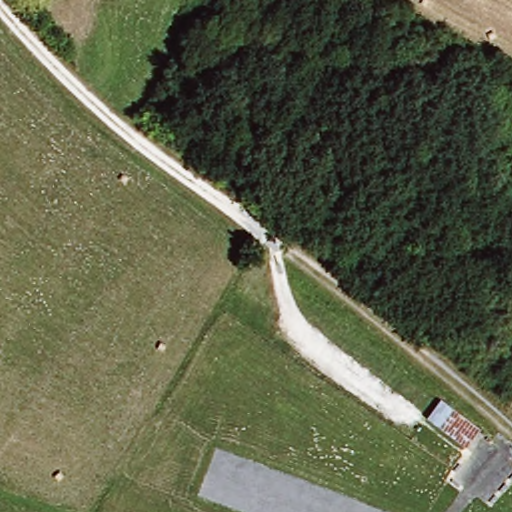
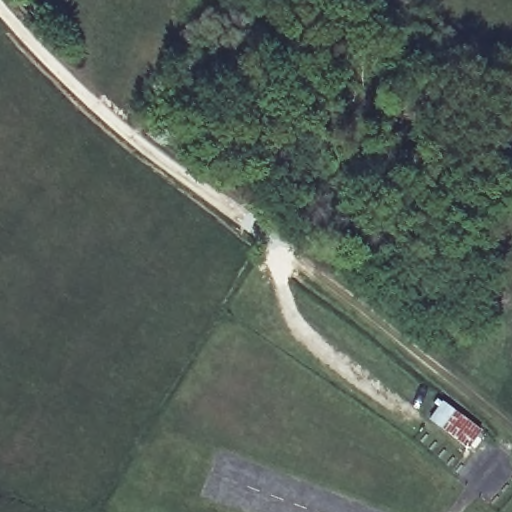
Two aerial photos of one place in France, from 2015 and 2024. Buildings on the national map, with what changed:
unchanged [(486,431),(474,446),(438,418),(450,403),(486,431)]

